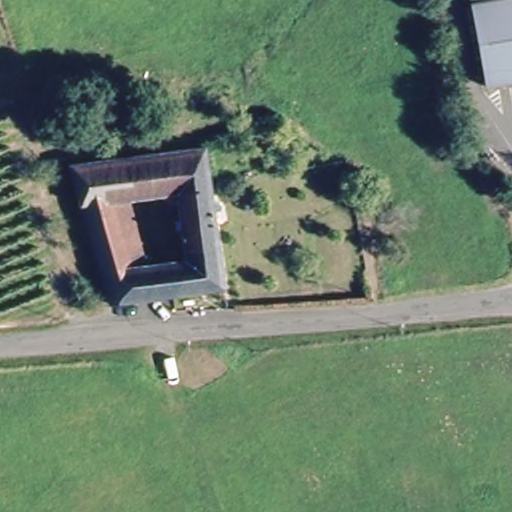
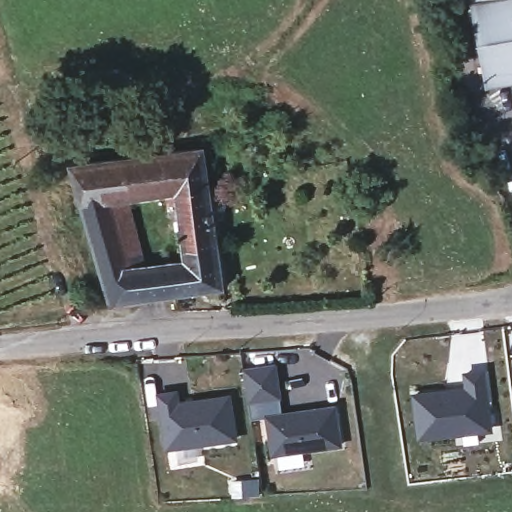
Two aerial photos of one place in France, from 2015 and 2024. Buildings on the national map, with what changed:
unchanged [(512,0),(512,84),(485,89),(467,0),(512,0)]
unchanged [(70,170),(202,147),(206,182),(219,287),(107,308),(70,170)]
new [(341,446),(273,456),(267,419),(251,421),(248,402),(242,371),(275,366),(280,397),(282,415),(335,407),(341,446)]
new [(465,388),(463,370),(487,367),(493,431),(418,440),(414,392),(465,388)]
new [(176,396),(178,407),(230,400),(237,441),(168,452),(159,399),(176,396)]

